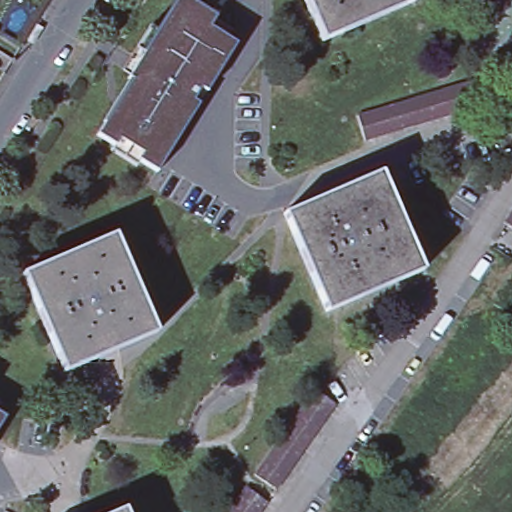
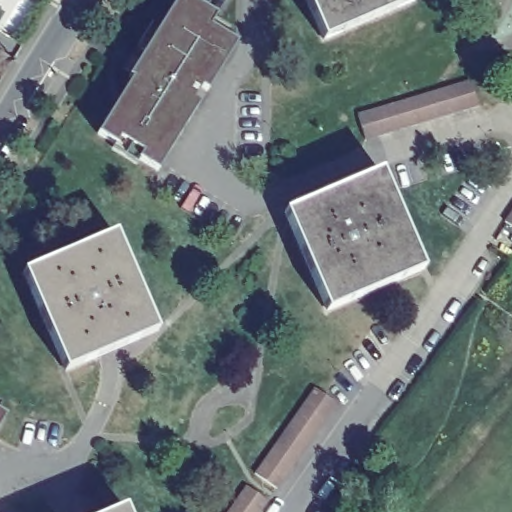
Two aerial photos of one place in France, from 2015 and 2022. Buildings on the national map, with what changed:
unchanged [(133,79),(130,77),(180,0),(194,0),(220,16),(214,27),(240,43),(210,92),(204,88),(196,101),(202,104),(160,172),(98,134),(133,79)]
unchanged [(322,40),(306,0),(412,0),(413,2),(322,40)]
unchanged [(383,106),(395,103),(407,99),(420,96),(432,92),(445,89),(457,85),(470,82),(477,108),(464,112),(452,115),(439,119),(427,122),(415,126),(402,129),(391,133),(377,136),(365,140),(357,114),(370,110),(383,106)]
unchanged [(379,176),(420,273),(325,313),(283,216),(379,176)]
unchanged [(510,212),(512,210),(512,229),(503,222),(510,212)]
unchanged [(115,236),(156,333),(65,372),(24,275),(115,236)]
unchanged [(268,456),(275,446),(283,435),(291,424),(298,413),(306,403),(313,393),(335,409),(328,419),(321,429),(313,440),(306,451),(298,462),(291,472),(283,484),(260,467),(268,456)]
unchanged [(0,429),(0,414),(6,418),(0,429)]
unchanged [(232,505),(239,495),(246,485),(270,500),(262,511),(261,512),(227,512),(232,505)]
unchanged [(127,508),(129,512),(117,512),(127,508)]

